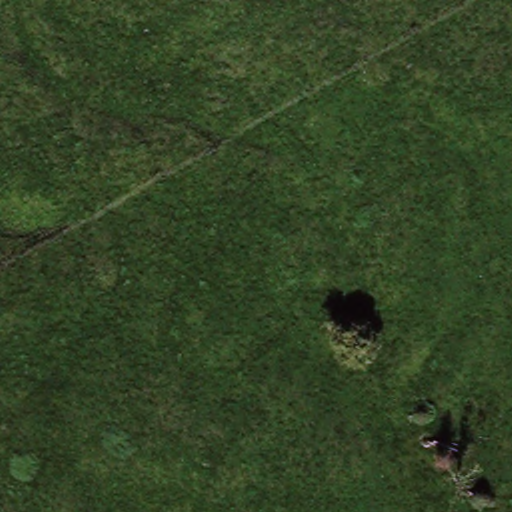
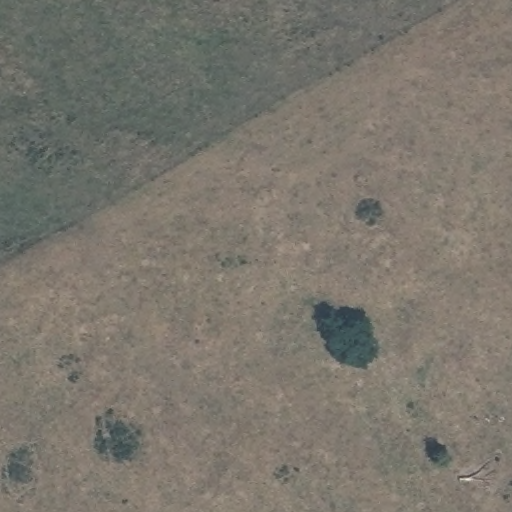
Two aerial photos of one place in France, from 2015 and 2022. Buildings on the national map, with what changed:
[]

